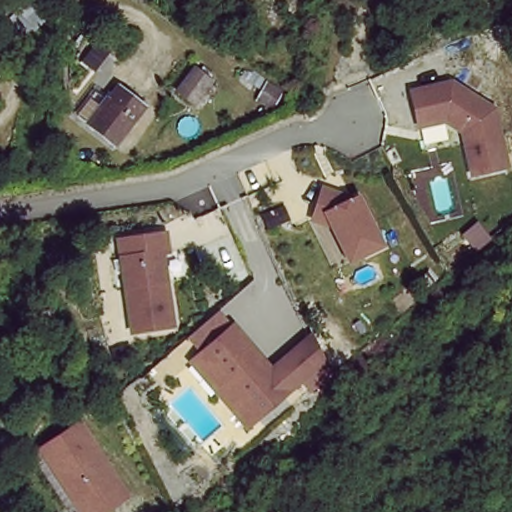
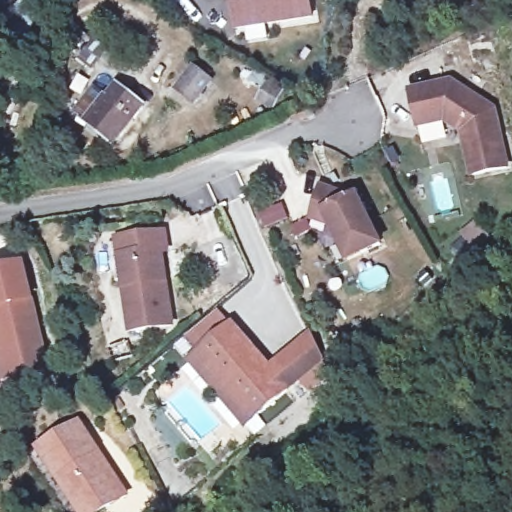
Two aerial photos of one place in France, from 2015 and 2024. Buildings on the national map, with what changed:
new [(314,17),(234,32),(229,0),(311,0),(314,17)]
unchanged [(192,71),(209,86),(191,106),(173,92),(192,71)]
unchanged [(450,77),(497,109),(510,167),(467,176),(460,137),(443,123),(417,127),(407,88),(450,77)]
unchanged [(112,93),(137,114),(112,148),(86,130),(112,93)]
unchanged [(348,197),(354,194),(381,247),(347,262),(332,234),(307,223),(318,187),(348,197)]
unchanged [(165,233),(168,258),(164,257),(171,325),(125,331),(113,236),(165,233)]
new [(24,262),(33,299),(50,370),(0,382),(0,268),(24,262)]
unchanged [(273,363),(303,336),(325,365),(247,430),(184,362),(232,322),(273,363)]
unchanged [(106,512),(77,512),(35,447),(80,418),(130,496),(106,512)]

